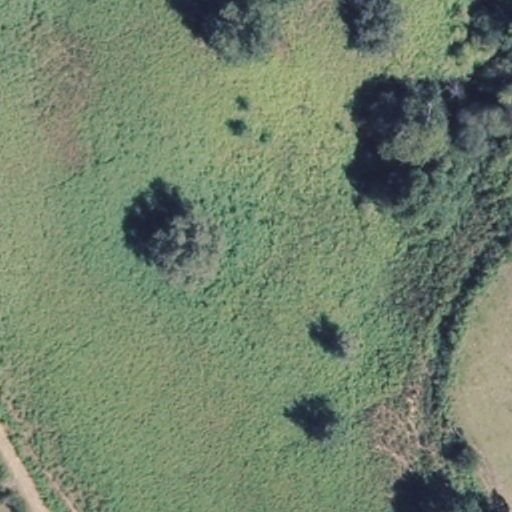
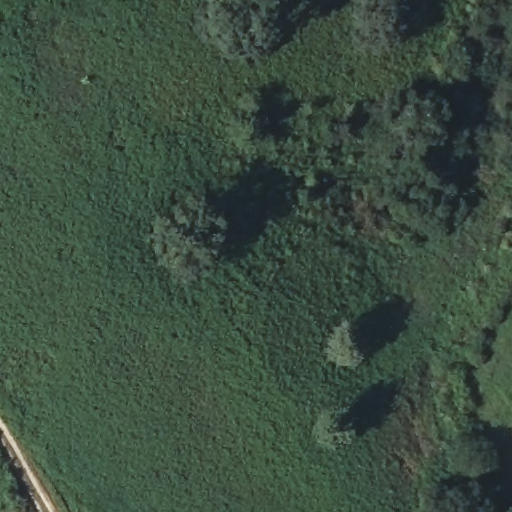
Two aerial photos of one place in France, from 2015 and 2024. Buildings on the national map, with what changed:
[]

